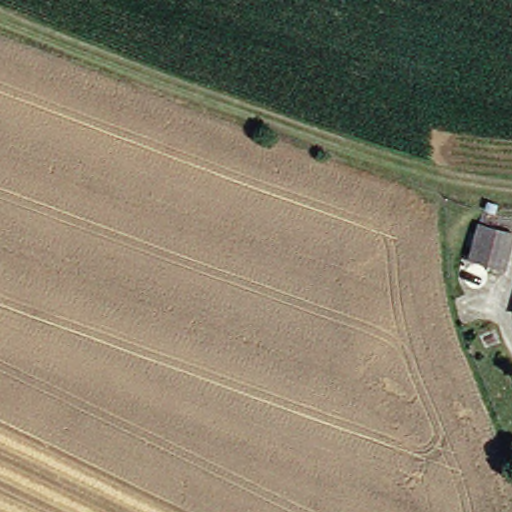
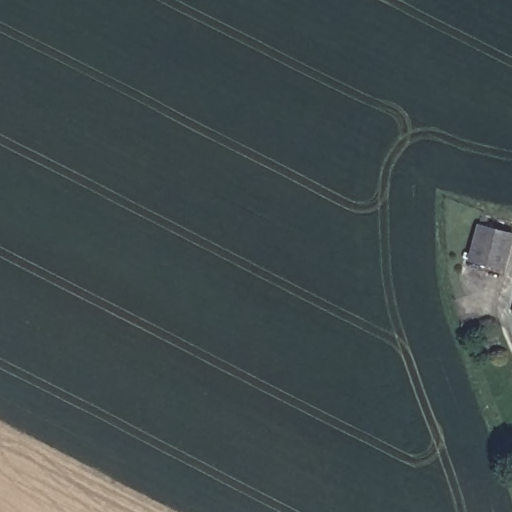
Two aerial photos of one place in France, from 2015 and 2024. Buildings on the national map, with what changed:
unchanged [(512,266),(483,259),(493,225),(512,229),(512,266)]

